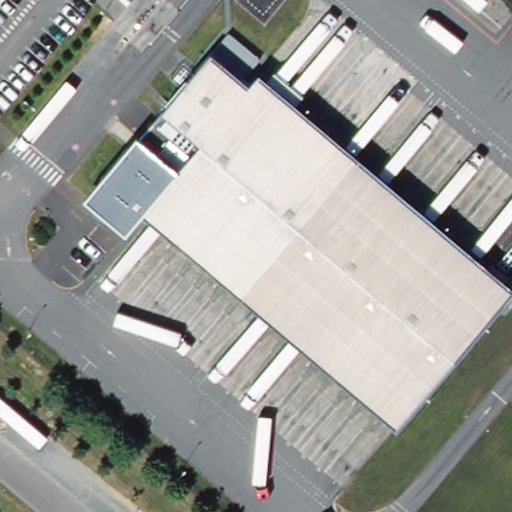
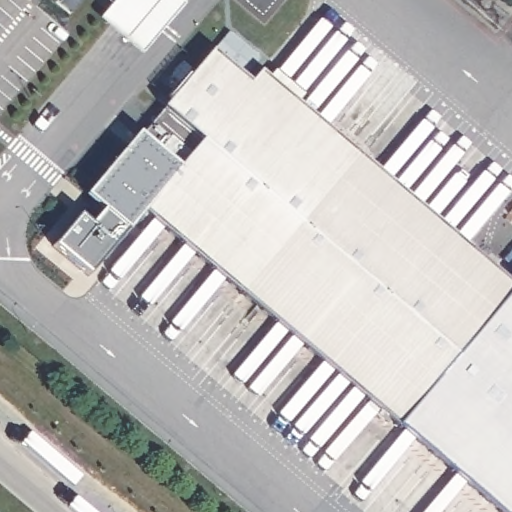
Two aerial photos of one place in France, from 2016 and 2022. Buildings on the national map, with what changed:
new [(114,0),(181,0),(184,2),(141,55),(99,19),(114,0)]
unchanged [(252,84),(266,68),(365,151),(512,273),(512,295),(400,429),(245,296),(148,211),(133,231),(101,204),(99,198),(99,190),(100,184),(103,180),(133,144),(172,178),(183,164),(143,132),(211,50),(252,84)]
new [(512,295),(512,512),(501,512),(400,429),(512,295)]

